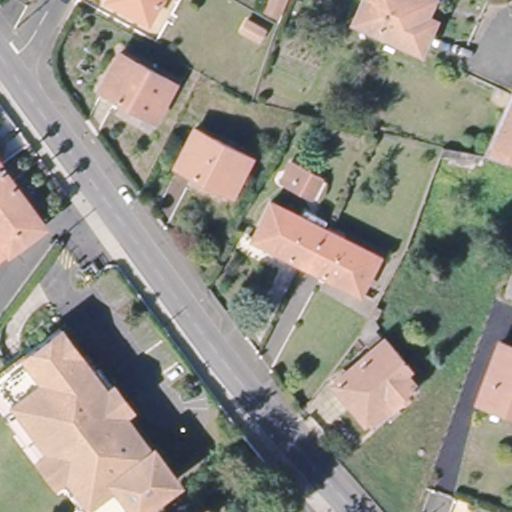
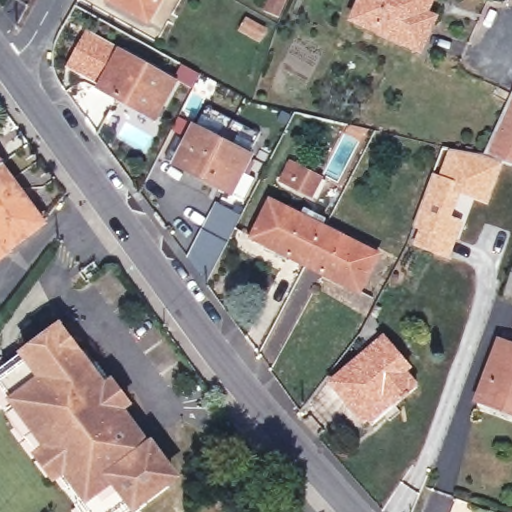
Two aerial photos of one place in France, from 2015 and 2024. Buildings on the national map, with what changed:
unchanged [(153,19),(119,0),(163,0),(153,19)]
unchanged [(353,20),(362,0),(429,0),(423,15),(429,19),(414,50),(353,20)]
unchanged [(267,27),(259,39),(243,28),(249,17),(267,27)]
new [(123,49),(103,84),(154,115),(150,119),(95,87),(98,81),(66,67),(85,29),(123,49)]
unchanged [(154,115),(103,84),(123,49),(174,78),(154,115)]
unchanged [(494,145),(512,104),(512,151),(494,145)]
unchanged [(247,154),(229,191),(177,164),(194,127),(247,154)]
new [(504,162),(491,203),(459,195),(453,215),(464,219),(449,260),(414,247),(419,230),(413,227),(434,174),(439,175),(451,147),(504,162)]
unchanged [(0,156),(1,157),(0,158),(0,156)]
unchanged [(44,214),(0,247),(0,158),(1,157),(44,214)]
unchanged [(323,174),(311,195),(284,180),(294,159),(323,174)]
unchanged [(253,237),(271,200),(324,226),(304,263),(253,237)]
new [(217,205),(241,216),(207,285),(189,261),(217,205)]
unchanged [(324,226),(378,254),(359,291),(304,263),(324,226)]
unchanged [(366,313),(376,325),(373,328),(403,369),(398,373),(411,390),(368,426),(331,381),(367,351),(354,334),(366,313)]
unchanged [(55,454),(5,385),(32,365),(27,358),(63,333),(81,357),(81,360),(95,378),(103,372),(117,391),(131,411),(124,418),(152,459),(154,457),(174,483),(139,510),(134,503),(123,512),(98,512),(70,475),(60,483),(45,463),(55,454)]
unchanged [(468,396),(488,342),(508,350),(512,340),(512,413),(503,410),(484,402),(468,396)]

